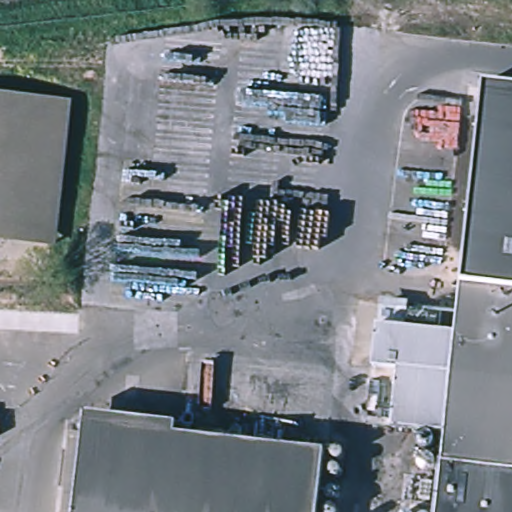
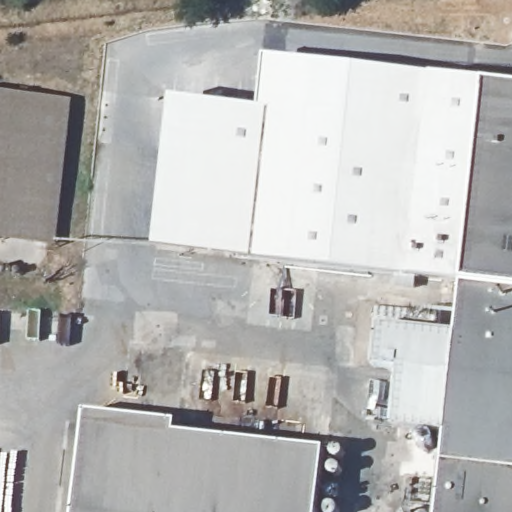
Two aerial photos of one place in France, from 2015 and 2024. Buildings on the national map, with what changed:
new [(463,284),(154,251),(170,101),(259,107),(265,56),(486,80),(463,284)]
unchanged [(446,415),(394,408),(398,351),(376,349),(383,306),(459,315),(487,67),(512,69),(512,512),(437,512),(446,415)]
unchanged [(72,104),(57,251),(0,244),(0,96),(72,104)]
unchanged [(327,432),(319,512),(74,512),(85,407),(327,432)]

